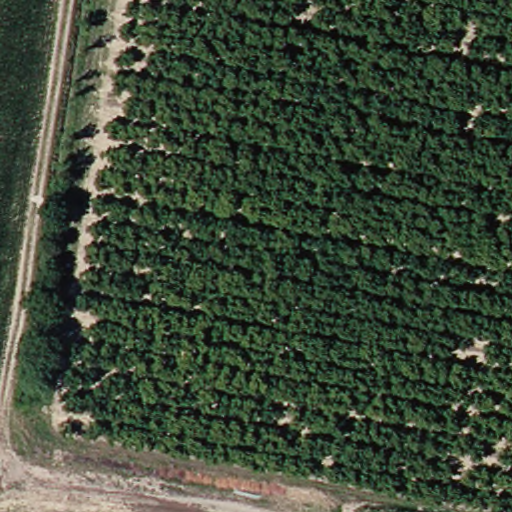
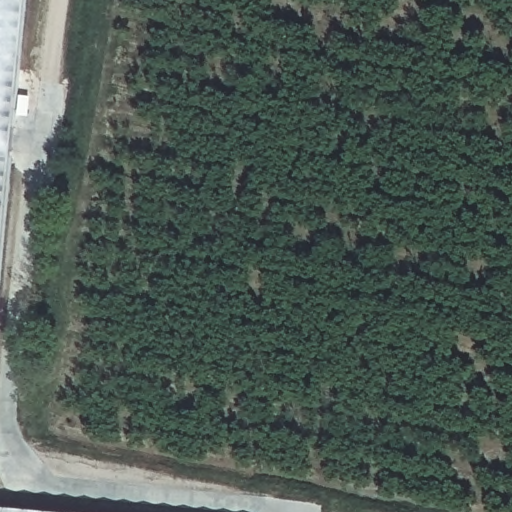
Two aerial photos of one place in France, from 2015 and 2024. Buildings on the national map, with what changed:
new [(0,285),(0,0),(31,0),(0,285)]
new [(0,512),(0,506),(66,512),(0,512)]

